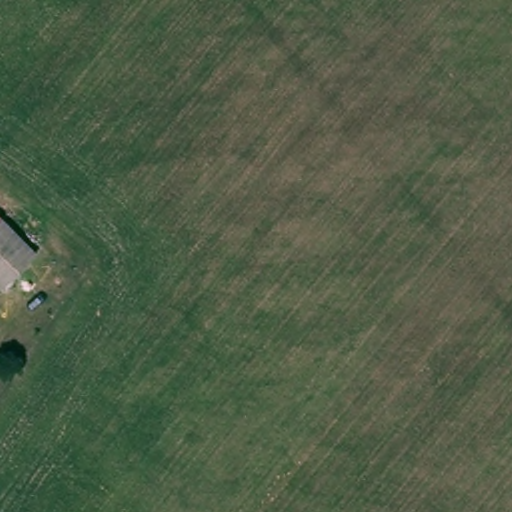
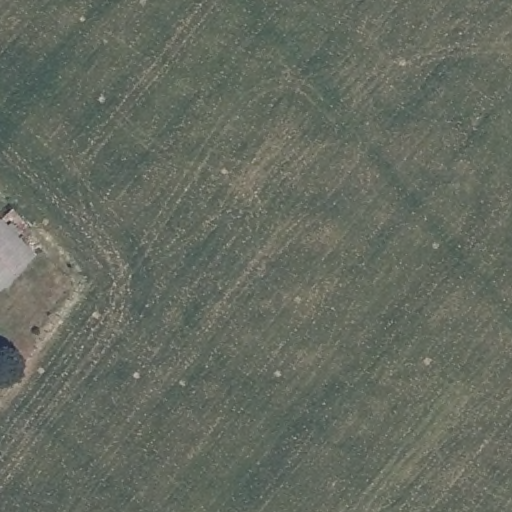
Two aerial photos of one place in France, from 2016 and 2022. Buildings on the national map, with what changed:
unchanged [(1,293),(0,292),(0,215),(41,254),(1,293)]

